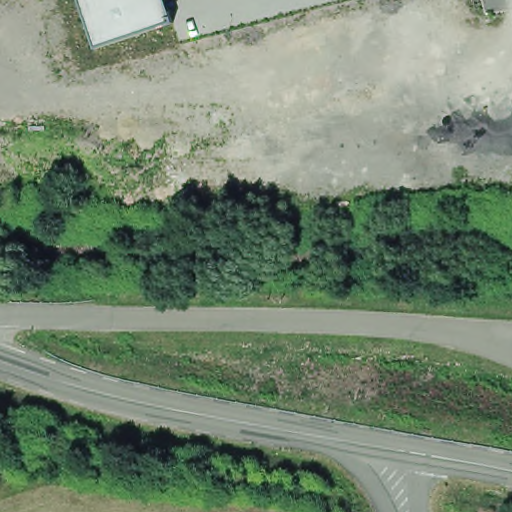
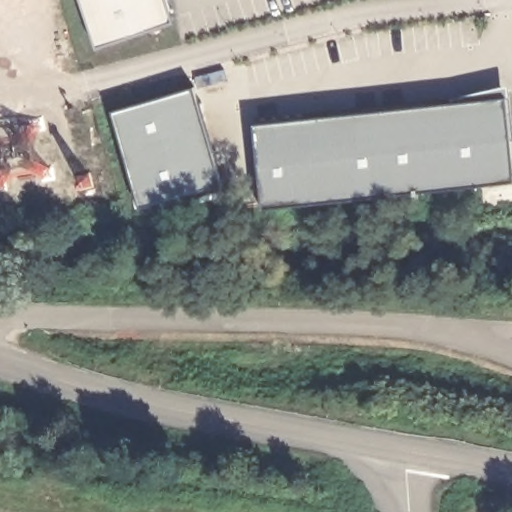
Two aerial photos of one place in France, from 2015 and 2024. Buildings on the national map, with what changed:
unchanged [(172,24),(95,49),(79,0),(166,0),(174,24),(172,24)]
new [(195,89),(229,189),(142,206),(117,114),(195,89)]
new [(512,141),(512,184),(263,211),(254,126),(507,98),(512,141)]

